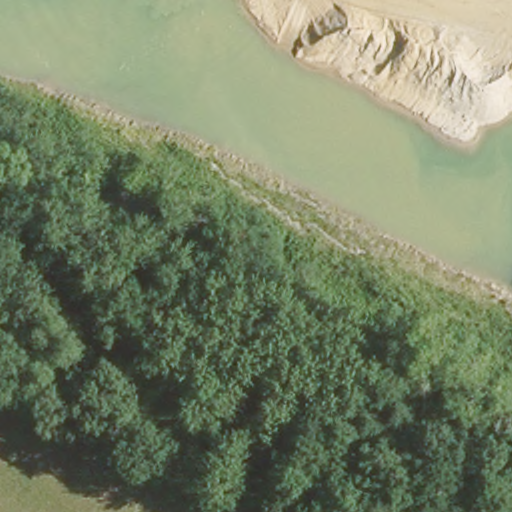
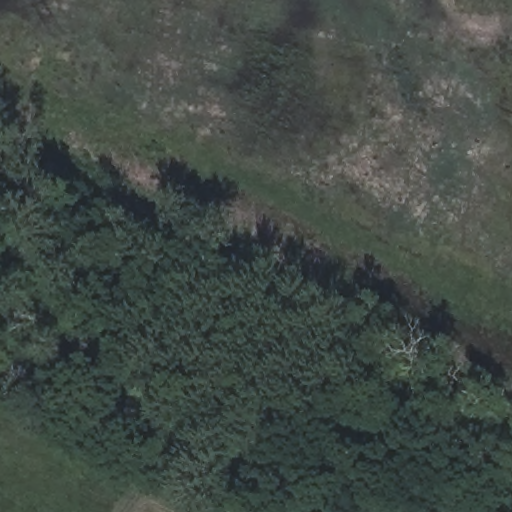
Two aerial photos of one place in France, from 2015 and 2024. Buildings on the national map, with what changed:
[]

